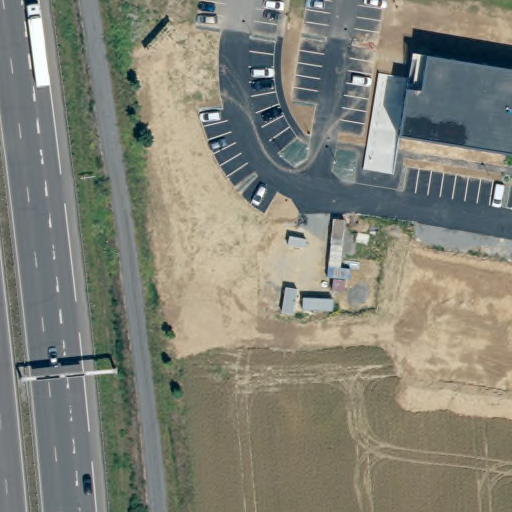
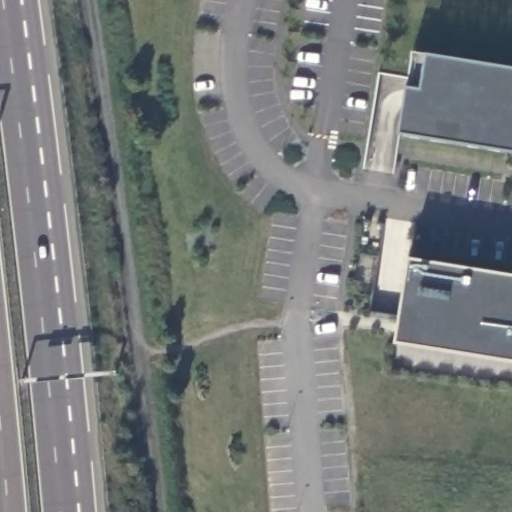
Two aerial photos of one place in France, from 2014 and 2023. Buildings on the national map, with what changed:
unchanged [(406,89),(421,90),(427,55),(512,68),(512,152),(399,134),(406,89)]
new [(512,362),(395,343),(410,260),(512,276),(512,362)]

